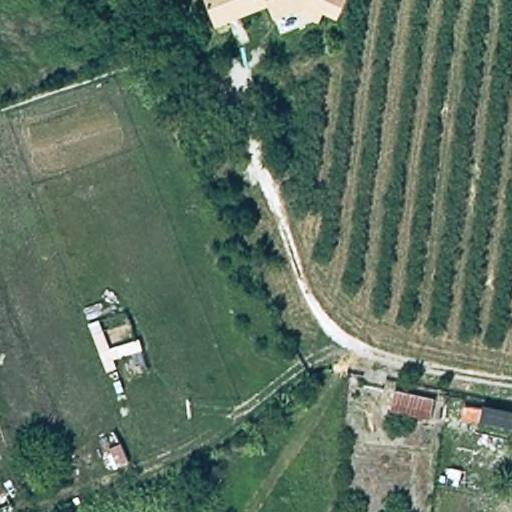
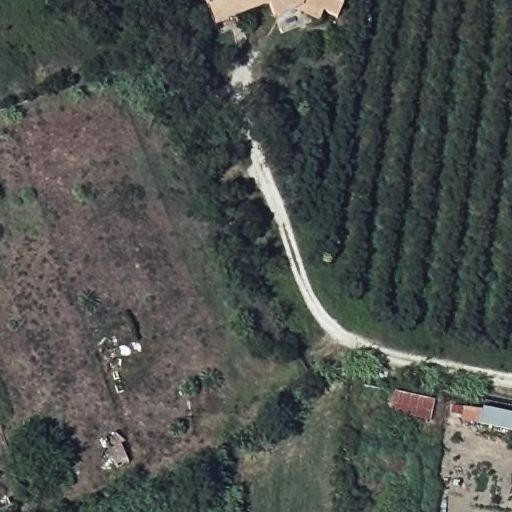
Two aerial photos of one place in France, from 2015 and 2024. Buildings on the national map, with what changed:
unchanged [(326,10),(323,17),(301,7),(270,20),(265,9),(214,28),(203,0),(346,0),(339,15),(326,10)]
unchanged [(387,417),(390,395),(433,401),(430,423),(387,417)]

